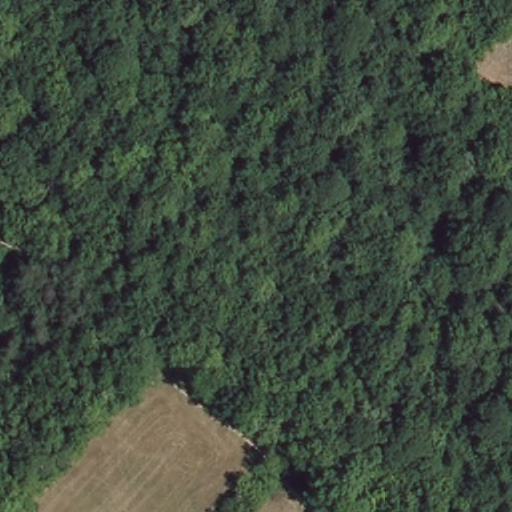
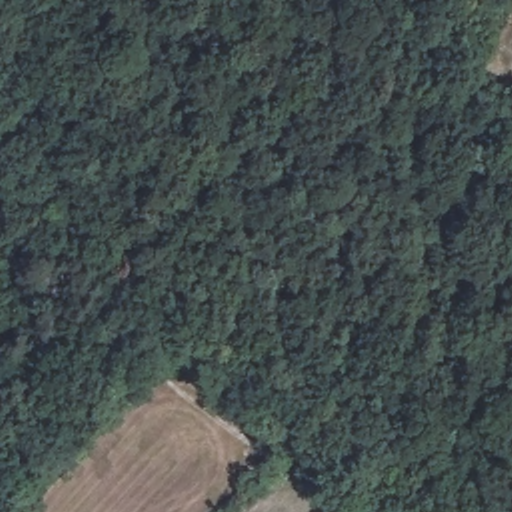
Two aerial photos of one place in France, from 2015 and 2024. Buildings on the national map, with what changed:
[]

